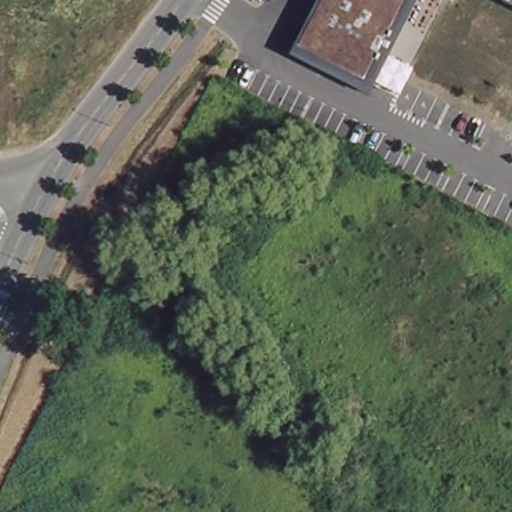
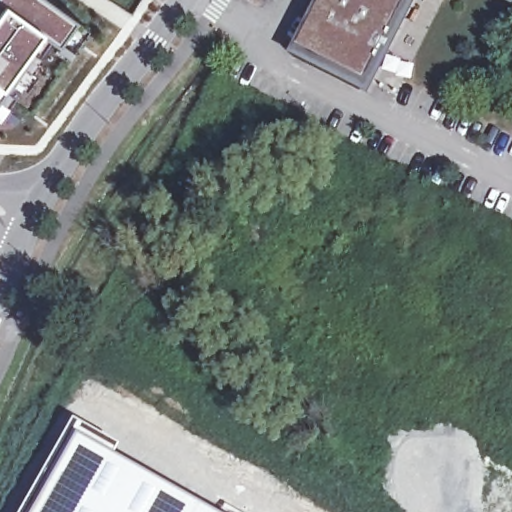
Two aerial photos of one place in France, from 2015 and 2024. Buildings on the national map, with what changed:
new [(52,42),(53,38),(40,29),(0,85),(0,0),(49,0),(70,15),(83,25),(65,51),(52,42)]
unchanged [(367,93),(289,54),(318,0),(416,0),(367,93)]
unchanged [(496,0),(512,0),(512,8),(496,0)]
new [(122,446),(117,456),(216,512),(22,512),(75,419),(122,446)]
new [(221,512),(218,512),(219,511),(221,512)]
new [(235,512),(233,512),(234,511),(235,512)]

